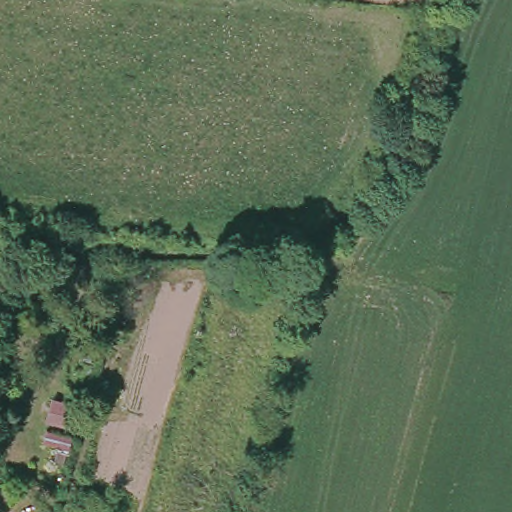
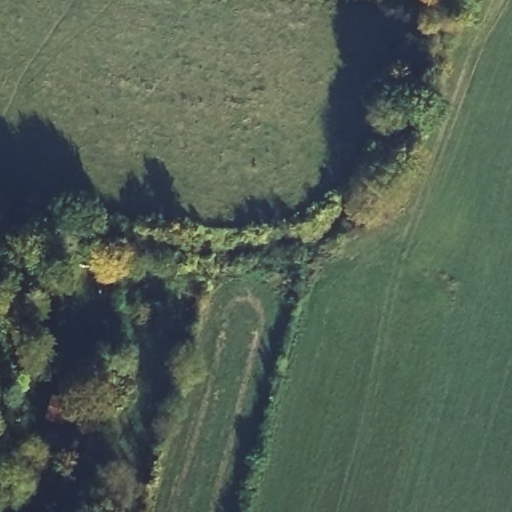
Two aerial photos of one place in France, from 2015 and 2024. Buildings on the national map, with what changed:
unchanged [(53,396),(80,406),(74,430),(44,420),(53,396)]
unchanged [(45,431),(72,437),(68,453),(43,447),(45,431)]

